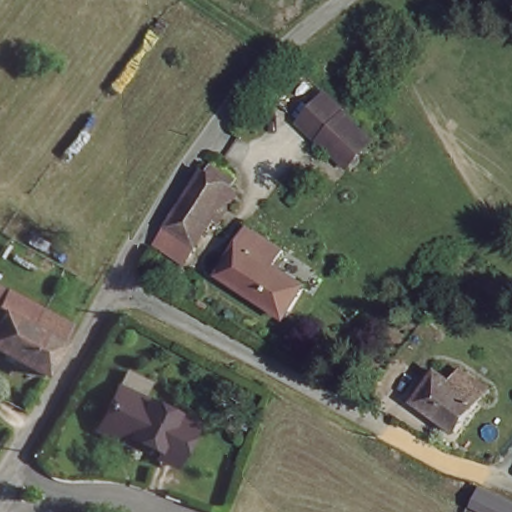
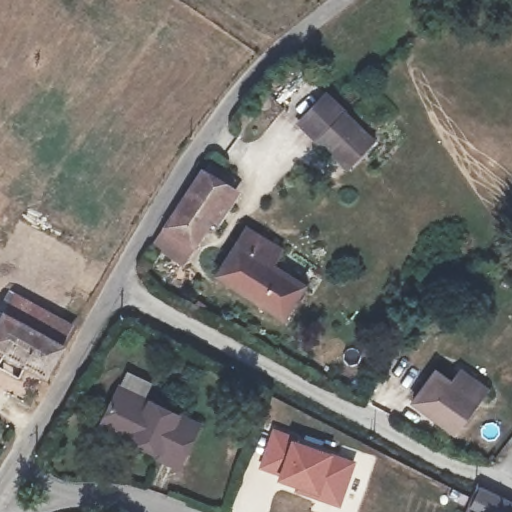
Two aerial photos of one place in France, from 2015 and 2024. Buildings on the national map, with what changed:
unchanged [(358,165),(352,171),(321,139),(290,109),(308,92),(318,83),(343,108),(362,127),(378,143),(358,165)]
unchanged [(233,186),(193,245),(167,225),(206,168),(233,186)]
unchanged [(214,271),(245,224),(275,245),(266,259),(304,285),(285,314),(214,271)]
unchanged [(13,295),(77,320),(45,376),(0,352),(0,303),(10,306),(13,295)]
unchanged [(489,392),(457,435),(419,408),(440,379),(457,390),(468,377),(489,392)]
unchanged [(162,463),(166,454),(145,444),(140,453),(105,435),(109,426),(126,389),(202,428),(185,464),(181,472),(162,463)]
new [(341,508),(293,491),(294,488),(276,482),(278,476),(258,469),(273,427),(291,436),(357,460),(341,508)]
new [(512,504),(512,512),(490,512),(471,502),(479,487),(512,504)]

